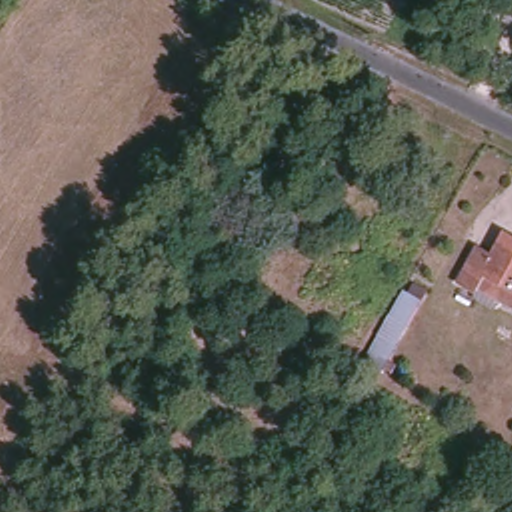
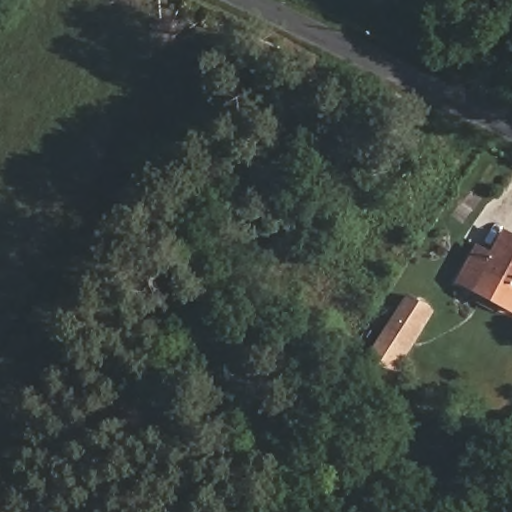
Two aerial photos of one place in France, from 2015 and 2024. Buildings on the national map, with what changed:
unchanged [(252,176),(266,153),(286,165),(275,188),(252,176)]
unchanged [(287,225),(303,204),(312,210),(300,232),(287,225)]
unchanged [(495,308),(461,285),(481,247),(495,253),(507,233),(512,235),(512,308),(500,302),(495,308)]
unchanged [(383,357),(375,368),(366,362),(406,292),(411,295),(417,284),(430,291),(391,361),(383,357)]

